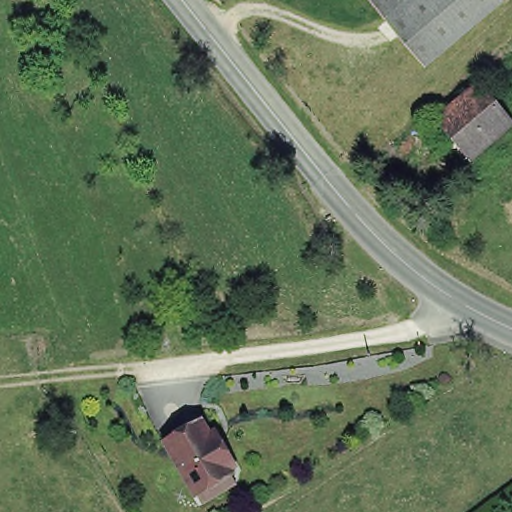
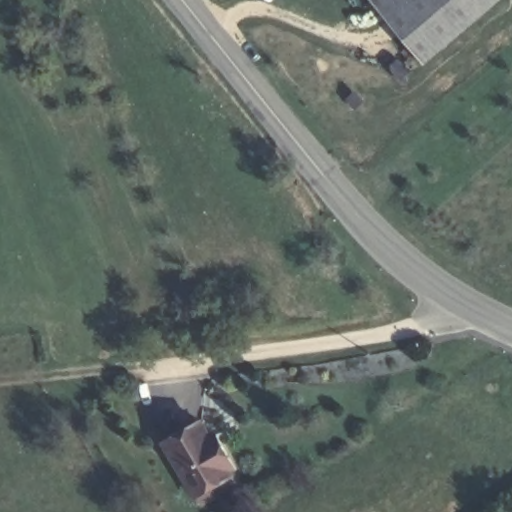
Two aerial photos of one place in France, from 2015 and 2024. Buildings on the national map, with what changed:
unchanged [(392,20),(374,0),(416,0),(392,20)]
unchanged [(410,42),(405,36),(392,20),(416,0),(505,0),(429,64),(410,42)]
demolished [(437,121),(475,87),(490,105),(487,107),(452,139),(437,121)]
demolished [(467,156),(452,139),(487,107),(490,105),(505,122),(467,156)]
unchanged [(194,501),(187,488),(160,441),(195,421),(204,436),(210,432),(217,445),(228,465),(222,468),(230,481),(194,501)]

